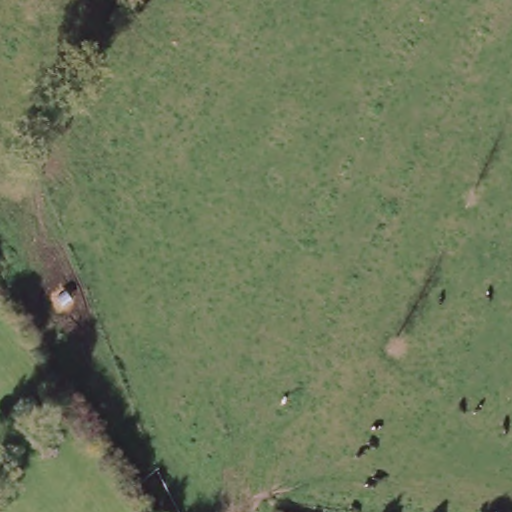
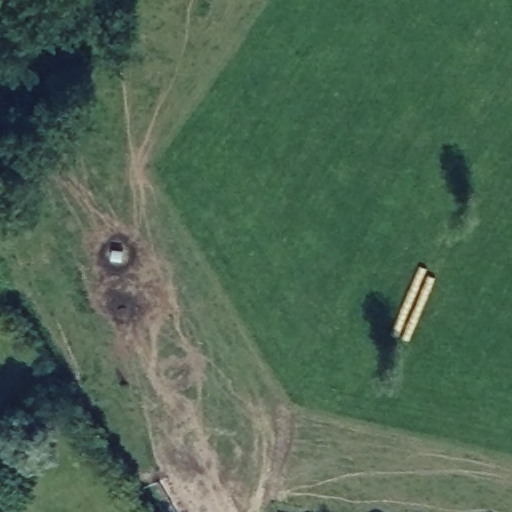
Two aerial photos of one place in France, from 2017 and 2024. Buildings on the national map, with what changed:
unchanged [(286,512),(283,512),(283,511),(286,512)]

